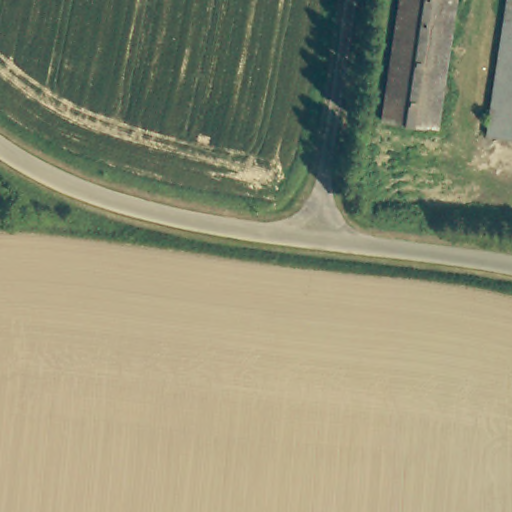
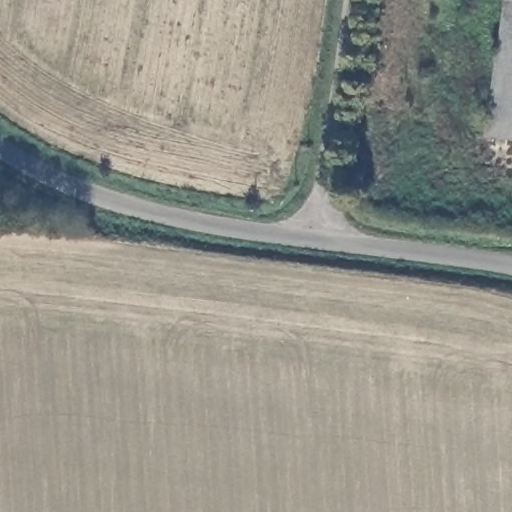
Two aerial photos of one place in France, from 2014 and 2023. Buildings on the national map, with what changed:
demolished [(386,118),(403,0),(458,0),(436,126),(386,118)]
unchanged [(509,0),(512,0),(512,136),(488,132),(509,0)]

